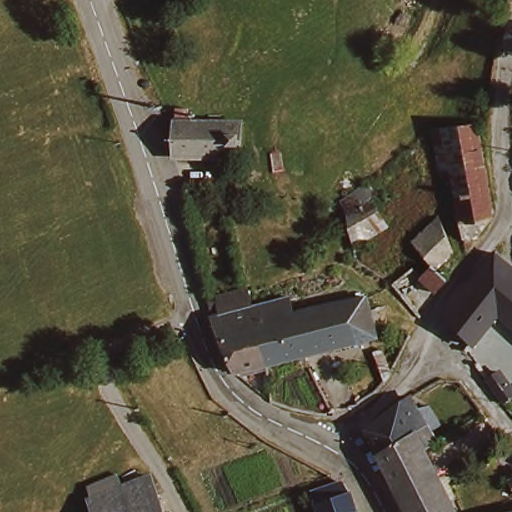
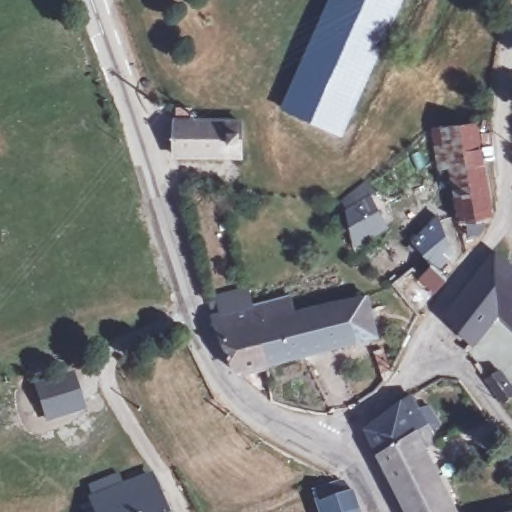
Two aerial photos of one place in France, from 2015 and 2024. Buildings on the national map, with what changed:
new [(344,137),(282,110),(331,0),(405,0),(344,137)]
unchanged [(450,119),(458,118),(472,118),(478,117),(479,122),(480,147),(482,168),(484,188),(484,189),(485,211),(484,216),(479,226),(479,227),(473,235),(457,235),(454,206),(450,175),(449,160),(437,161),(435,131),(434,119),(450,119)]
unchanged [(206,155),(169,153),(170,120),(193,121),(233,122),(233,137),(232,156),(206,155)]
unchanged [(375,197),(387,221),(369,237),(358,246),(357,240),(355,231),(353,223),(350,218),(347,214),(343,210),(335,205),(334,205),(360,187),(364,185),(368,182),(375,197)]
unchanged [(427,290),(423,294),(407,279),(417,269),(422,264),(402,243),(422,222),(427,215),(431,224),(436,238),(440,246),(440,250),(437,256),(427,270),(437,280),(427,290)]
unchanged [(505,336),(492,323),(472,350),(469,348),(463,339),(451,324),(447,319),(454,310),(464,296),(483,270),(484,268),(494,256),(502,264),(507,269),(512,274),(512,343),(505,336)]
unchanged [(250,361),(241,363),(238,357),(236,353),(229,336),(226,331),(220,316),(215,308),(212,297),(210,292),(219,290),(241,283),(250,280),(253,293),(254,296),(255,301),(258,311),(260,318),(262,328),(265,337),(265,338),(269,351),(270,356),(250,361)]
unchanged [(276,290),(289,287),(292,293),(297,305),(317,301),(325,299),(357,291),(367,289),(371,303),(377,328),(320,343),(289,350),(270,356),(269,351),(265,338),(265,337),(262,328),(260,318),(258,311),(255,301),(254,296),(276,290)]
unchanged [(500,373),(503,377),(512,390),(512,402),(507,406),(503,401),(494,388),(490,383),(489,381),(500,373)]
unchanged [(366,431),(370,427),(382,418),(383,417),(394,410),(401,404),(409,398),(418,410),(427,405),(432,412),(435,417),(429,422),(417,429),(414,431),(400,440),(397,441),(384,450),(377,454),(366,431)]
unchanged [(397,441),(400,440),(414,431),(417,429),(429,422),(435,417),(439,422),(432,428),(432,429),(439,438),(430,442),(439,465),(452,497),(458,512),(406,512),(390,479),(377,454),(384,450),(397,441)]
unchanged [(313,512),(313,511),(305,487),(333,475),(335,479),(341,491),(345,501),(347,507),(335,512),(313,512)]
unchanged [(94,489),(122,478),(127,490),(154,479),(167,512),(99,512),(95,502),(99,501),(94,489)]
unchanged [(507,485),(512,482),(512,496),(507,485)]
unchanged [(512,505),(512,512),(501,512),(500,509),(512,505)]
unchanged [(347,508),(349,512),(335,512),(347,507),(347,508)]
unchanged [(501,512),(494,512),(500,509),(501,512)]

